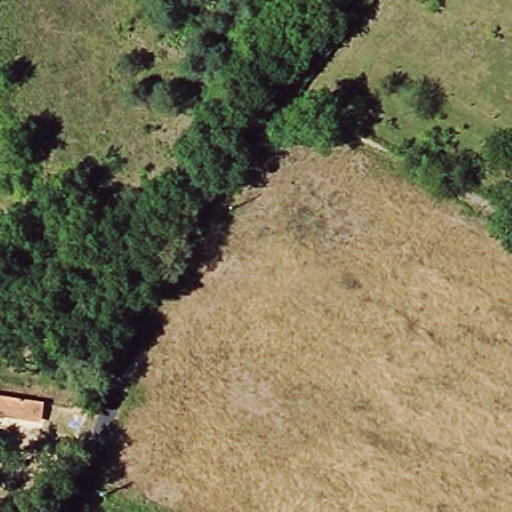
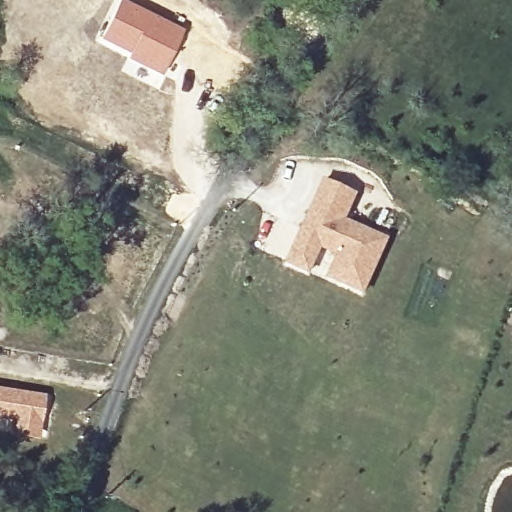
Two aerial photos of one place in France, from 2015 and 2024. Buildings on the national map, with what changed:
new [(119,0),(127,0),(185,28),(162,76),(125,59),(127,54),(100,39),(119,0)]
new [(323,181),(354,194),(342,221),(385,241),(361,293),(329,278),(337,256),(319,247),(308,273),(287,263),(323,181)]
unchanged [(48,429),(0,422),(0,402),(53,411),(48,429)]

